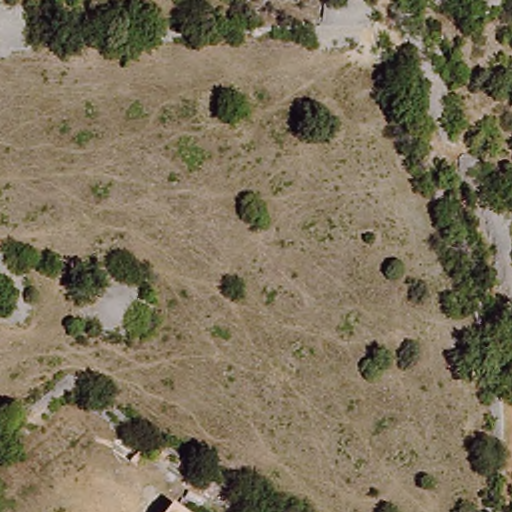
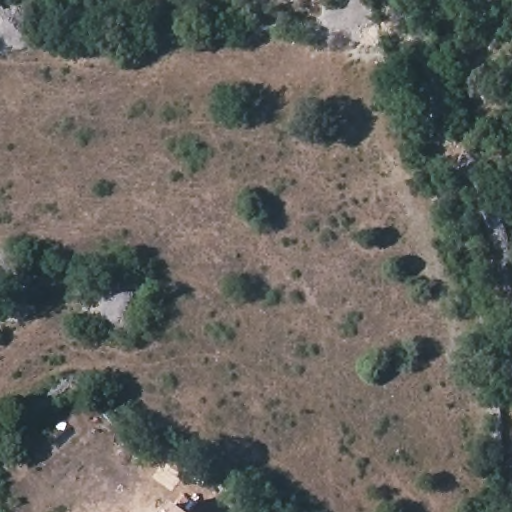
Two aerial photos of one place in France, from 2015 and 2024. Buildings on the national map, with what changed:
unchanged [(171,512),(173,508),(179,512),(171,512)]

